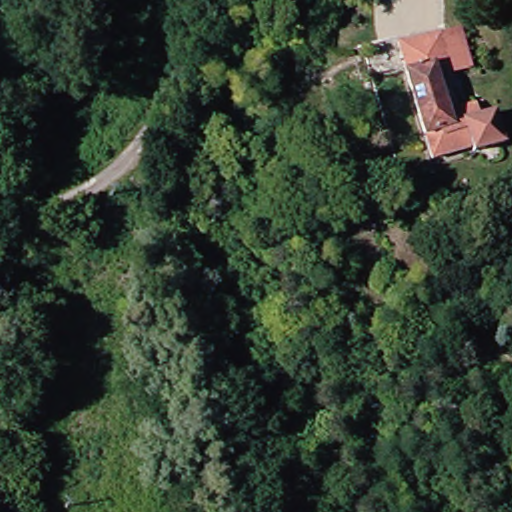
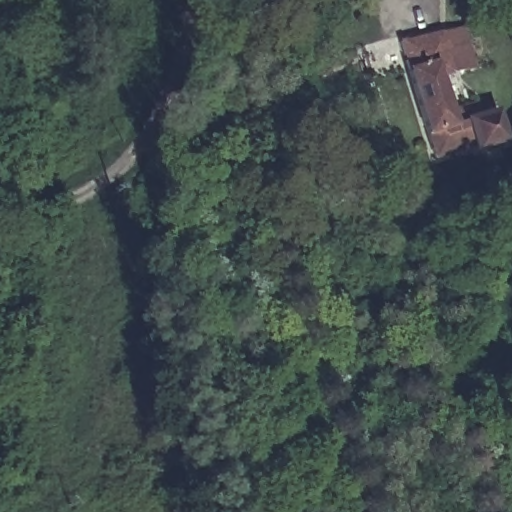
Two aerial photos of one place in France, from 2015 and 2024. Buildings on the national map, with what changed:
unchanged [(454,111),(472,107),(479,119),(505,109),(512,133),(512,144),(481,154),(478,150),(441,162),(407,43),(451,31),(470,25),(481,67),(460,73),(447,80),(454,111)]

